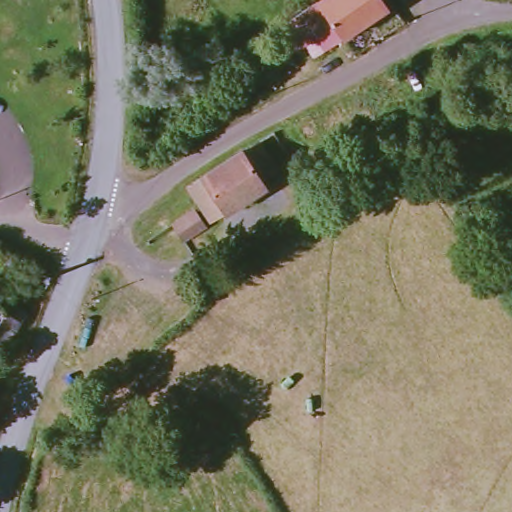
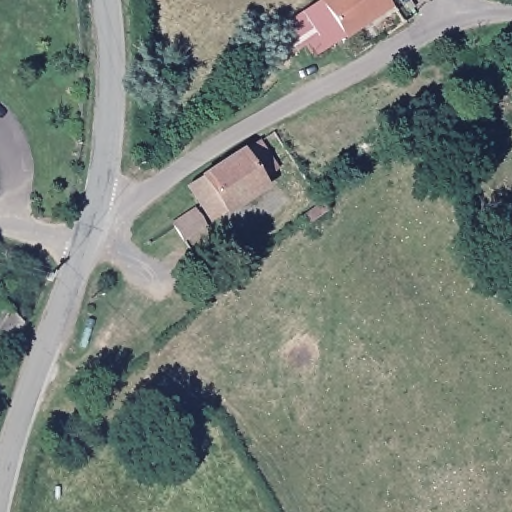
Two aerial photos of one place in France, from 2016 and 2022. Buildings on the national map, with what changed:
unchanged [(272,40),(287,30),(285,26),(324,0),(387,0),(392,8),(347,39),(346,37),(317,56),(310,44),(301,50),(285,60),(272,40)]
unchanged [(247,148),(263,137),(281,165),(265,175),(270,182),(230,208),(229,205),(215,215),(192,180),(246,146),(247,148)]
unchanged [(177,218),(199,204),(210,221),(188,235),(177,218)]
unchanged [(321,204),(326,210),(307,224),(303,217),(321,204)]
unchanged [(0,358),(0,293),(29,313),(0,358)]

